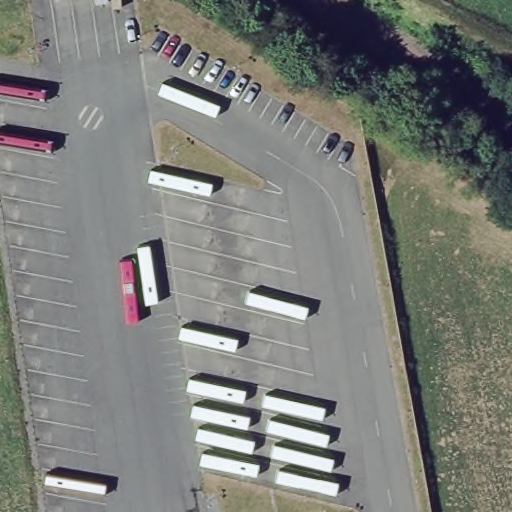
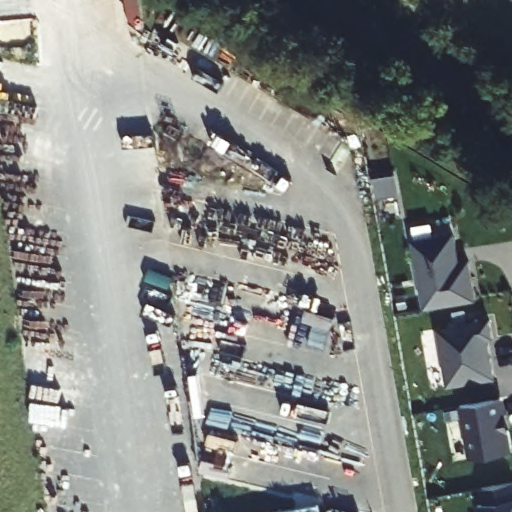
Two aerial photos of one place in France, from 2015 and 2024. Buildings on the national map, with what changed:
new [(452,236),(456,239),(460,264),(470,263),(477,303),(426,311),(414,242),(452,236)]
new [(491,322),(494,339),(489,339),(496,379),(449,387),(440,330),(491,322)]
new [(462,406),(501,399),(504,399),(510,431),(512,446),(512,453),(471,459),(462,406)]
new [(479,506),(486,504),(484,489),(512,484),(512,512),(480,512),(479,506)]
new [(321,504),(322,512),(274,512),(321,504)]

